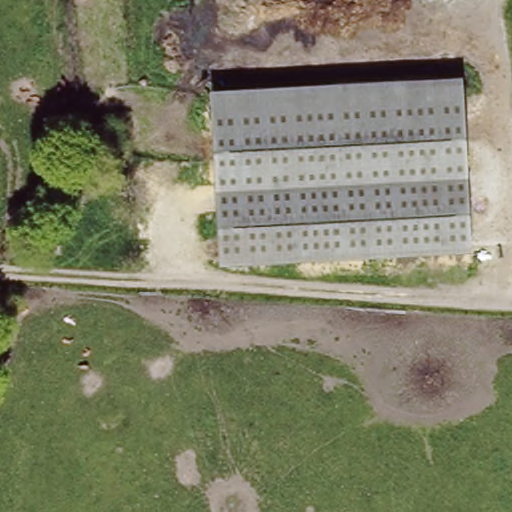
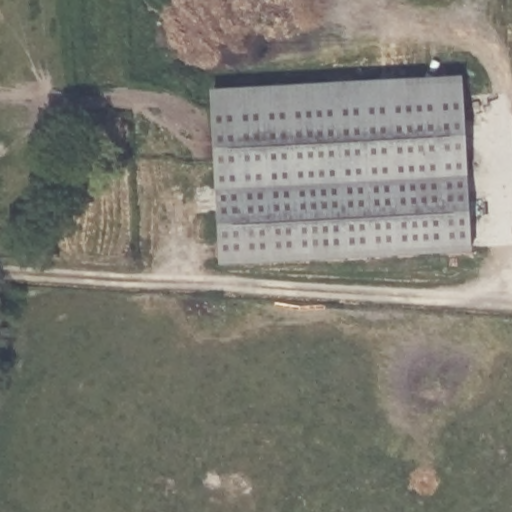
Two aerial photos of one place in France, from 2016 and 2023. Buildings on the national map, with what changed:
unchanged [(456,79),(465,235),(219,252),(208,96),(456,79)]

